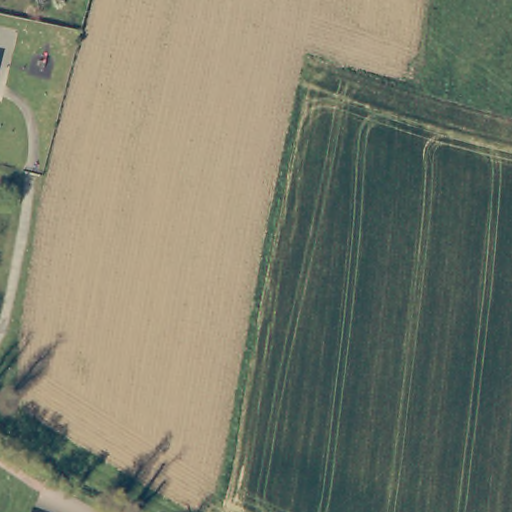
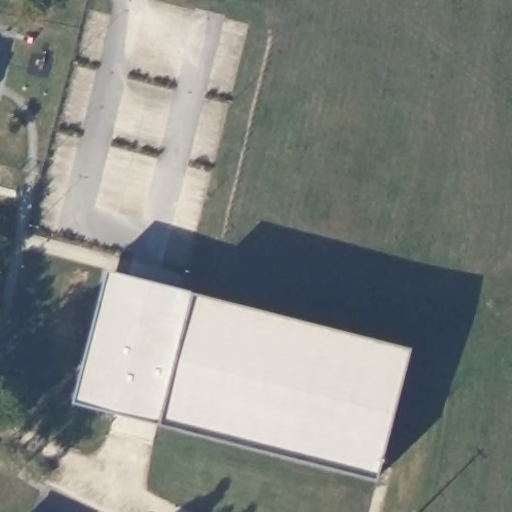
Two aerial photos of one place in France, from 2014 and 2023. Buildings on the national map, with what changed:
new [(376,479),(156,424),(70,402),(105,268),(191,292),(410,348),(376,479)]

